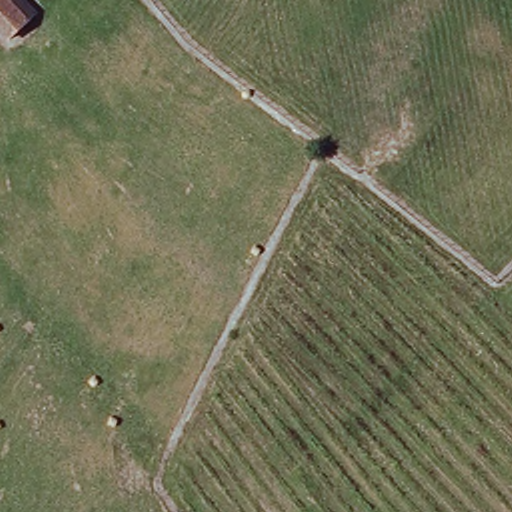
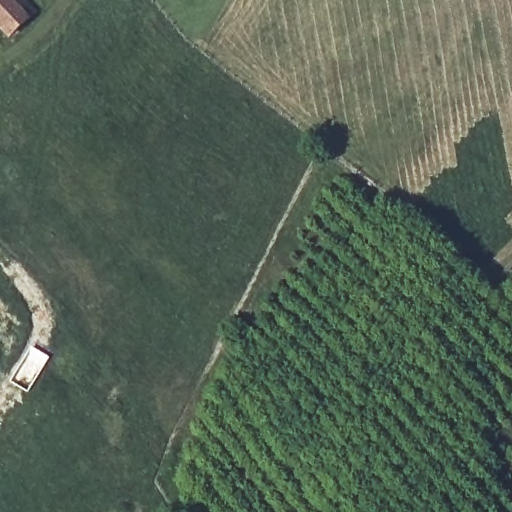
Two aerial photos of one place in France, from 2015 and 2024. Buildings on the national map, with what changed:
unchanged [(19,40),(0,20),(0,7),(7,0),(12,0),(35,24),(19,40)]

